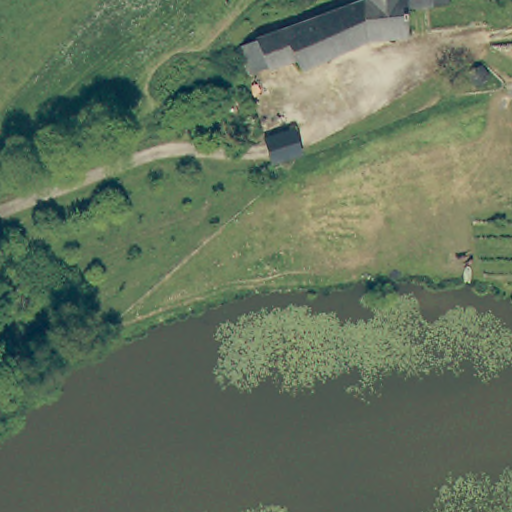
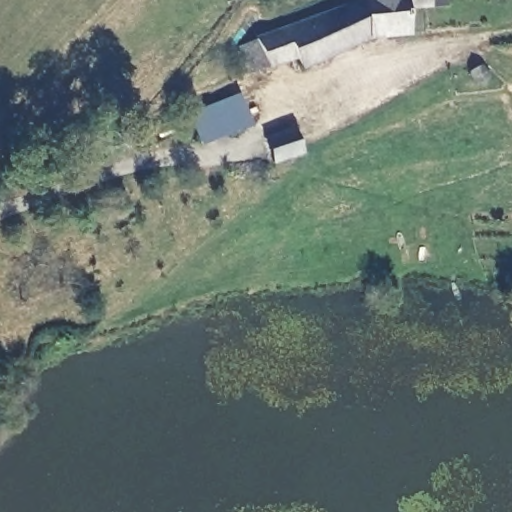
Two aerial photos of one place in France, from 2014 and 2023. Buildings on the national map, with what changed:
unchanged [(267,36),(276,31),(296,22),(315,12),(335,4),(345,0),(421,0),(411,2),(416,27),(382,30),(310,62),(305,52),(279,64),(259,72),(248,45),(267,36)]
unchanged [(472,67),(463,72),(457,60),(467,56),(472,67)]
new [(240,95),(252,126),(200,146),(187,115),(240,95)]
unchanged [(277,160),(267,137),(296,125),(305,147),(277,160)]

